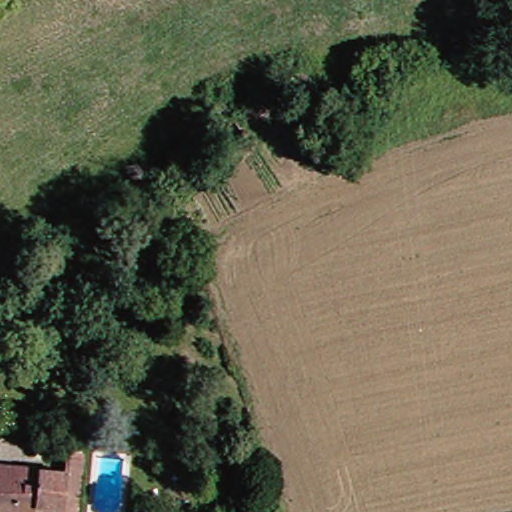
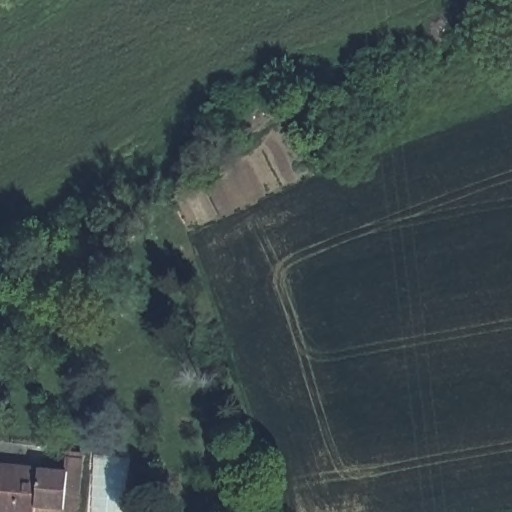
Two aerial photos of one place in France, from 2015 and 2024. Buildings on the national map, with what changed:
unchanged [(79,454),(91,455),(87,512),(61,512),(62,501),(45,500),(45,512),(26,512),(0,510),(0,461),(78,467),(79,454)]

